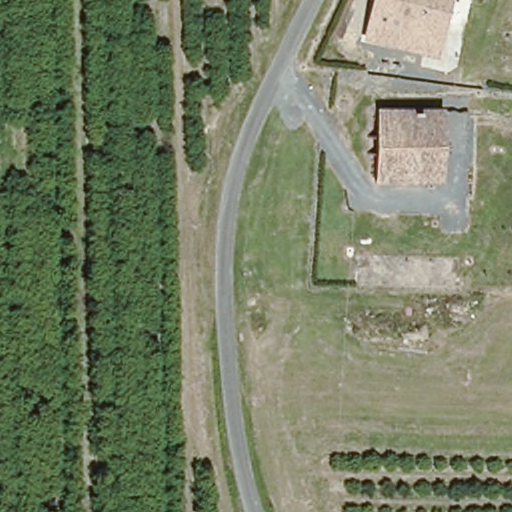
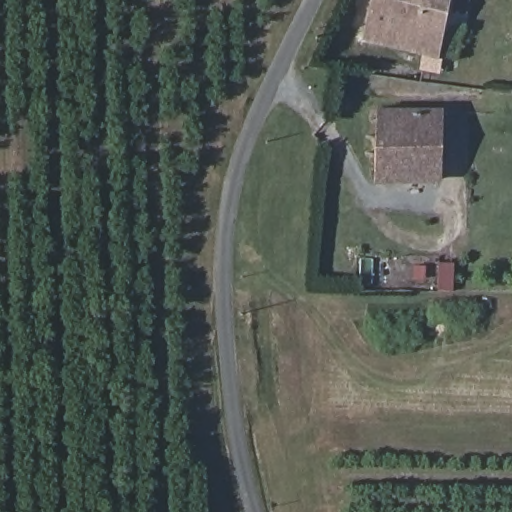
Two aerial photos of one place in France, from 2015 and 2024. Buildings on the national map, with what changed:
unchanged [(433,57),(368,42),(377,0),(443,0),(433,57)]
unchanged [(438,182),(375,176),(381,110),(445,115),(438,182)]

